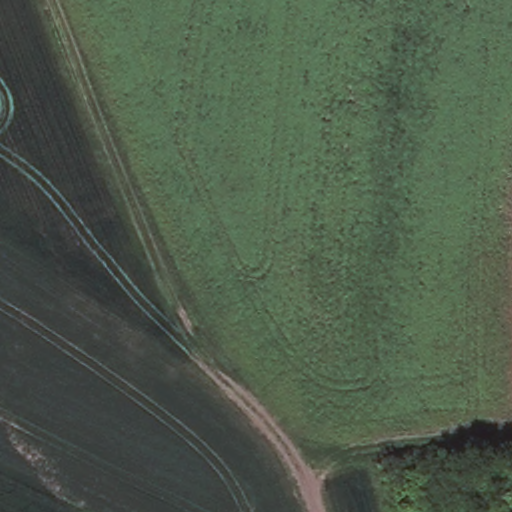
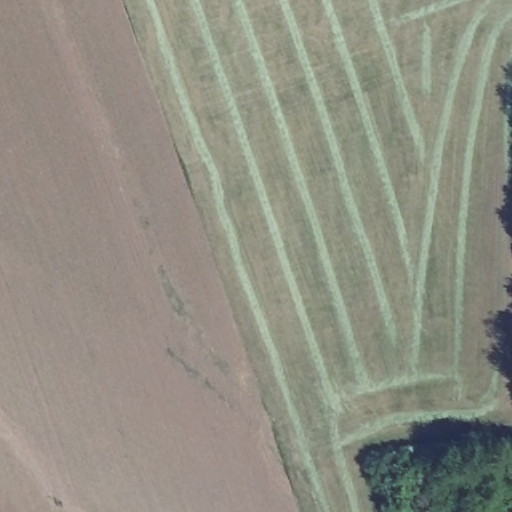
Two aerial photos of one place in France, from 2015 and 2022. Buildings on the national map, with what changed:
[]

